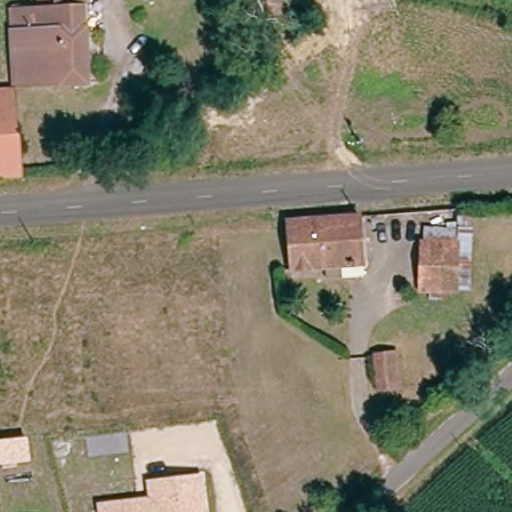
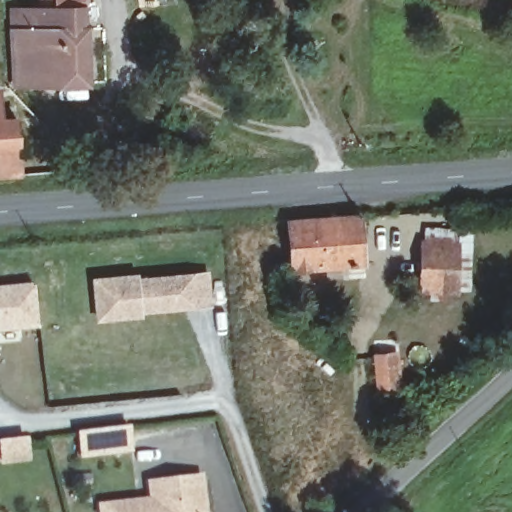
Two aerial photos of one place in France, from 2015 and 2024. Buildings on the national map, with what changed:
unchanged [(24,24),(22,1),(47,0),(73,0),(75,20),(24,24)]
unchanged [(80,81),(11,85),(9,29),(24,27),(24,24),(75,20),(77,20),(80,81)]
unchanged [(0,173),(0,151),(0,125),(0,97),(12,95),(14,124),(15,149),(17,171),(0,173)]
unchanged [(356,264),(288,272),(284,221),(350,214),(356,264)]
unchanged [(456,278),(423,280),(422,233),(455,232),(456,278)]
new [(134,275),(134,279),(206,272),(209,303),(192,305),(191,300),(160,303),(155,308),(137,310),(138,314),(96,318),(92,278),(134,275)]
new [(40,328),(12,333),(12,339),(0,341),(0,285),(35,282),(40,328)]
unchanged [(398,390),(375,393),(371,361),(395,358),(398,390)]
new [(80,459),(76,433),(130,425),(133,452),(80,459)]
new [(21,463),(0,465),(0,442),(19,440),(21,463)]
unchanged [(206,512),(98,512),(97,502),(147,495),(146,481),(200,474),(206,512)]

